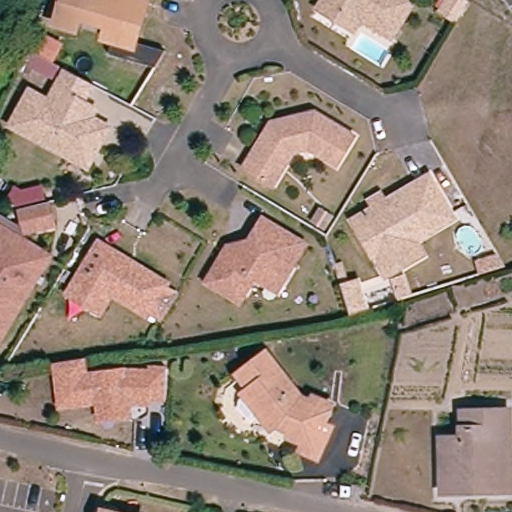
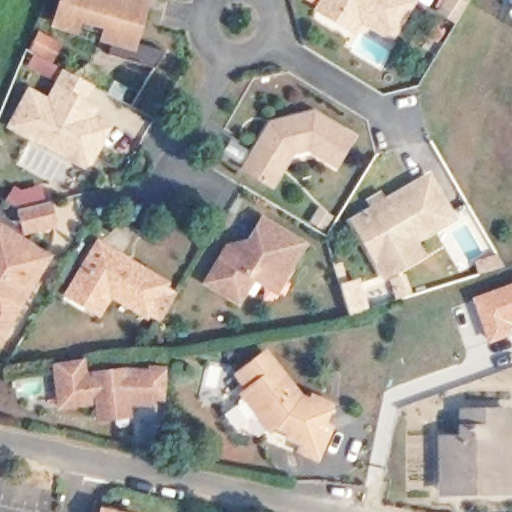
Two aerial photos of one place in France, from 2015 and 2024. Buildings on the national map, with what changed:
unchanged [(64,0),(116,0),(115,0),(139,7),(128,42),(165,54),(155,70),(108,56),(113,39),(103,36),(106,28),(79,20),(76,29),(57,23),(64,0)]
unchanged [(317,11),(324,0),(408,0),(413,3),(391,39),(360,20),(353,32),(335,21),(317,11)]
unchanged [(64,159),(25,138),(60,72),(85,85),(86,86),(76,105),(83,107),(88,110),(84,119),(103,129),(88,155),(82,168),(64,159)]
unchanged [(277,116),(306,110),(314,114),(317,110),(353,132),(335,161),(313,148),(315,144),(309,140),(289,145),(285,151),(289,154),(272,182),(242,164),(268,122),(272,125),(277,116)]
unchanged [(396,271),(384,278),(352,222),(373,210),(369,203),(380,196),(384,204),(428,179),(452,220),(415,240),(424,255),(396,271)]
unchanged [(11,220),(16,220),(13,205),(42,198),(47,221),(15,230),(24,238),(44,250),(0,323),(0,213),(11,220)]
unchanged [(332,217),(324,231),(311,223),(319,210),(332,217)]
unchanged [(260,282),(247,275),(232,299),(199,279),(222,242),(232,248),(238,237),(241,240),(257,215),(299,241),(278,276),(270,288),(260,282)]
unchanged [(65,290),(71,281),(97,238),(165,280),(163,283),(175,291),(160,316),(147,309),(145,312),(109,291),(103,301),(98,310),(65,290)]
new [(512,323),(510,323),(512,330),(512,335),(487,344),(470,297),(512,282),(512,323)]
unchanged [(356,283),(365,312),(349,316),(340,287),(356,283)]
unchanged [(88,371),(124,367),(147,368),(148,364),(167,365),(166,401),(151,401),(150,406),(131,405),(132,421),(95,425),(93,405),(55,410),(51,362),(85,357),(88,371)]
unchanged [(237,408),(252,396),(241,381),(268,361),(297,402),(314,408),(320,397),(335,403),(326,424),(334,427),(319,462),(303,455),(305,448),(276,437),(269,425),(256,433),(237,408)]
unchanged [(444,487),(441,444),(463,444),(462,431),(464,416),(478,417),(509,417),(510,442),(506,443),(509,497),(486,497),(444,498),(444,487)]
unchanged [(100,508),(115,512),(100,512),(100,508)]

